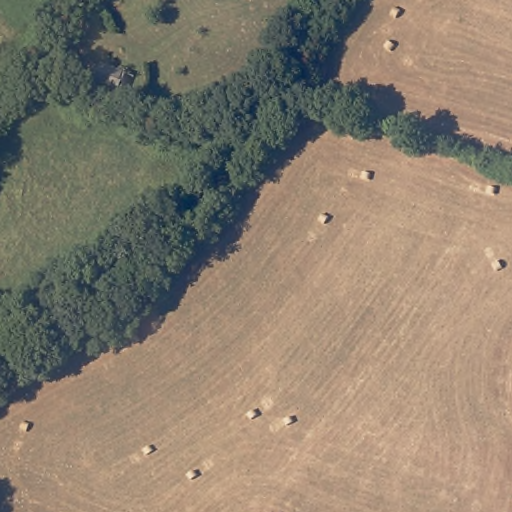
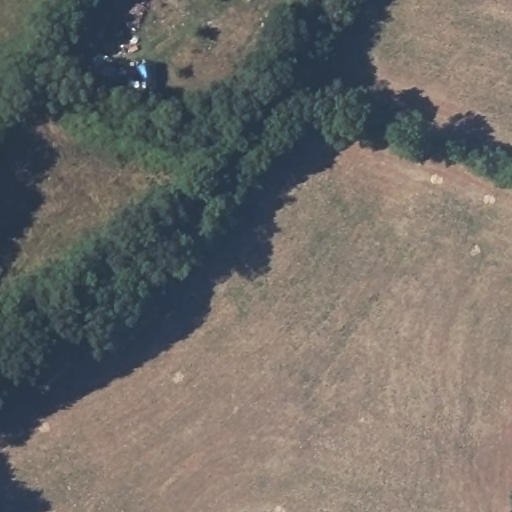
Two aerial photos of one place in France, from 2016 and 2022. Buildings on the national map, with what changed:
unchanged [(126,92),(119,90),(92,81),(99,62),(126,71),(132,74),(126,92)]

